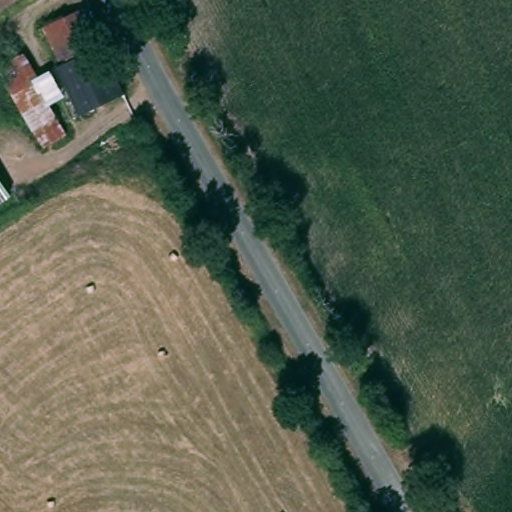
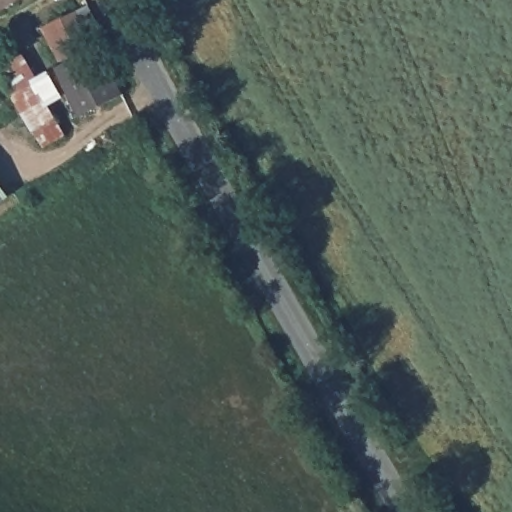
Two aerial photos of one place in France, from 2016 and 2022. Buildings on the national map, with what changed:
unchanged [(2,13),(0,10),(0,0),(22,0),(2,13)]
unchanged [(90,7),(105,37),(97,40),(125,95),(93,109),(52,25),(90,7)]
unchanged [(30,54),(40,73),(55,68),(71,95),(56,104),(72,134),(46,146),(1,69),(30,54)]
unchanged [(20,187),(0,202),(0,160),(20,187)]

